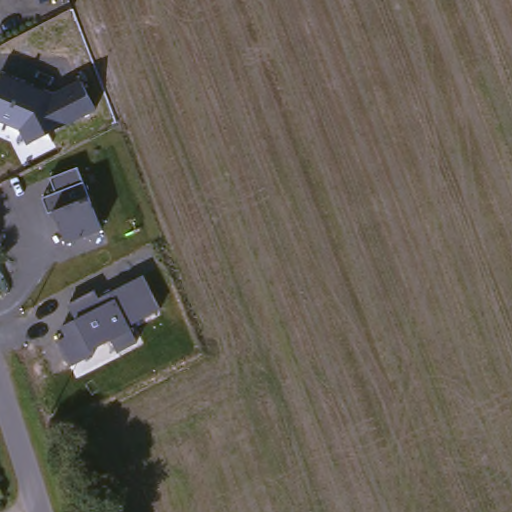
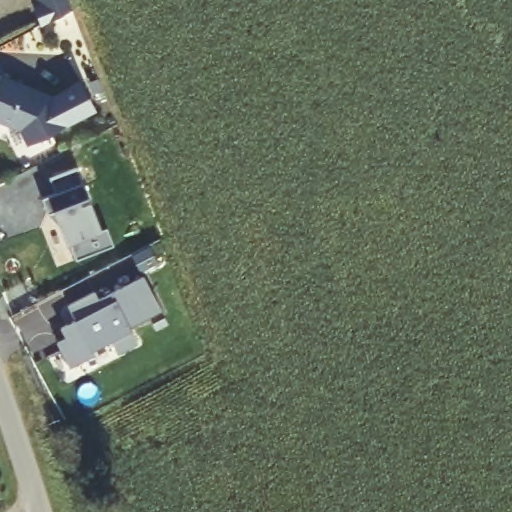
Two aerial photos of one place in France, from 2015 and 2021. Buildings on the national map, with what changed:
unchanged [(40,4),(38,0),(51,0),(40,4)]
unchanged [(18,130),(0,122),(0,74),(1,73),(46,90),(51,96),(81,80),(96,112),(26,144),(18,130)]
unchanged [(66,244),(54,210),(47,212),(43,198),(56,192),(51,179),(77,169),(91,199),(103,231),(66,244)]
unchanged [(129,325),(138,344),(117,353),(112,340),(91,350),(93,354),(69,365),(58,341),(66,337),(61,326),(76,320),(68,305),(96,291),(98,298),(143,277),(161,309),(129,325)]

